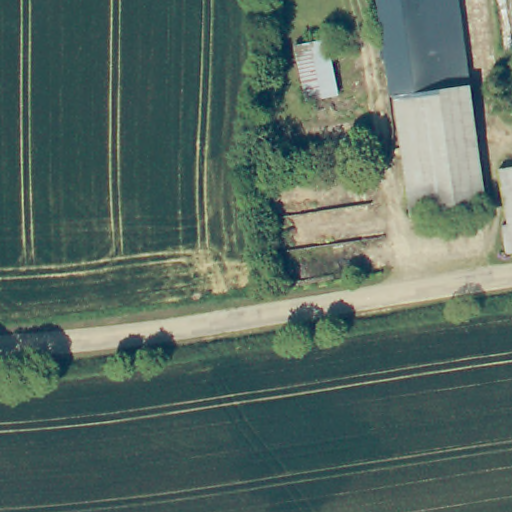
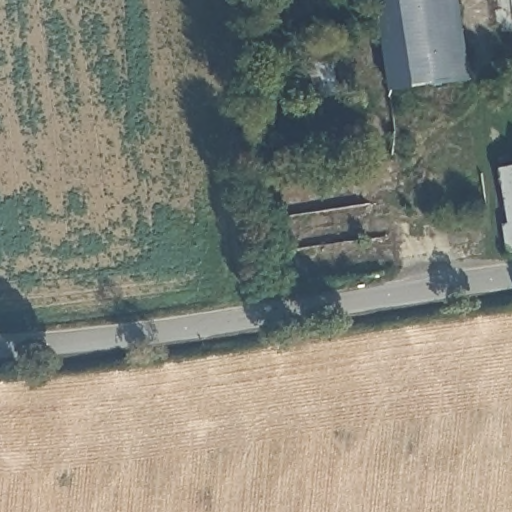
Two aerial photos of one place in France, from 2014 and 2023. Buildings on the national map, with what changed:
unchanged [(397,97),(382,0),(457,0),(472,87),(397,97)]
unchanged [(296,44),(322,37),(336,88),(309,95),(296,44)]
demolished [(417,215),(397,97),(472,87),(483,169),(488,204),(417,215)]
unchanged [(500,230),(508,229),(500,167),(512,165),(512,253),(502,255),(500,230)]

